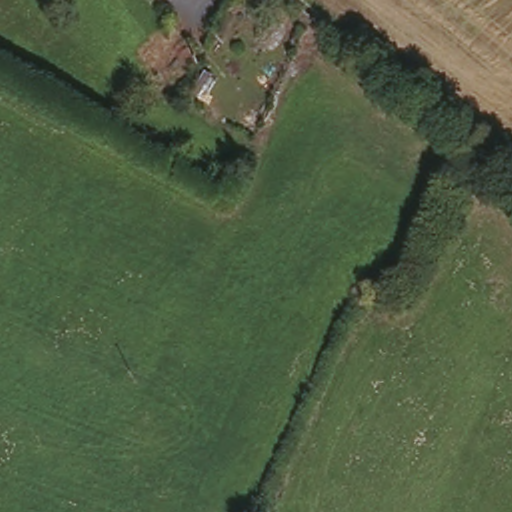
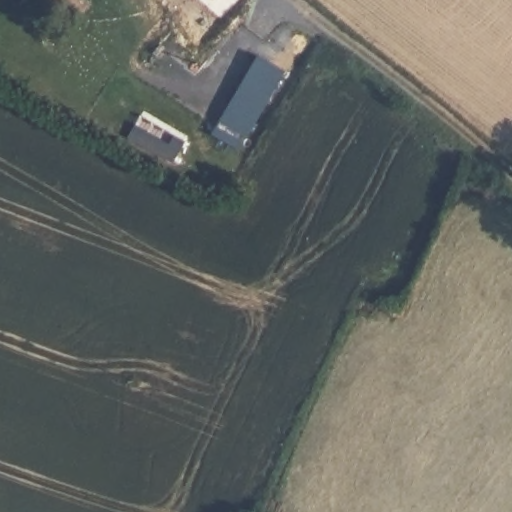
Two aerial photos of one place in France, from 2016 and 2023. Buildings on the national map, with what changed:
new [(288,70),(239,150),(214,134),(258,51),(288,70)]

